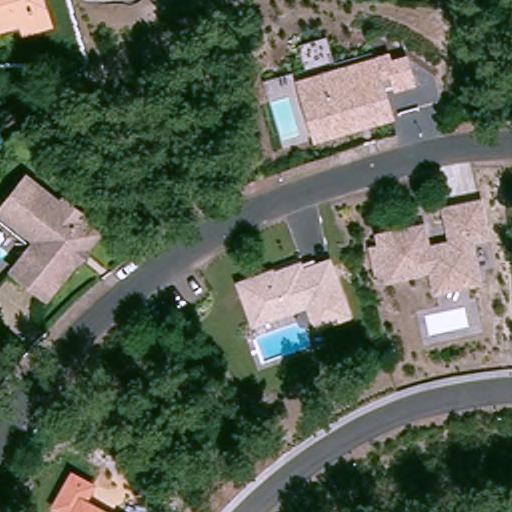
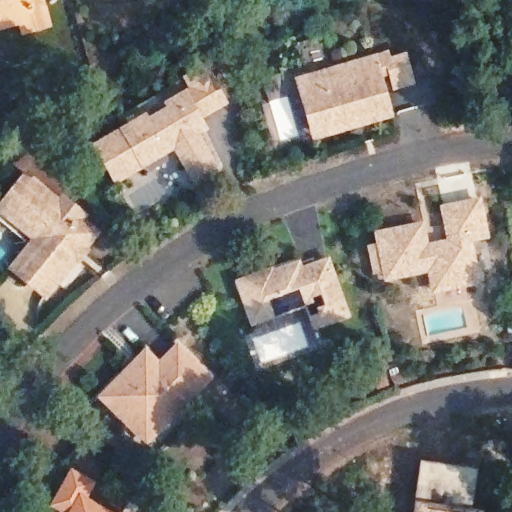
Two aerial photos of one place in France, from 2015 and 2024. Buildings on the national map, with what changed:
unchanged [(37,31),(16,38),(12,27),(0,31),(0,0),(28,0),(37,31)]
unchanged [(314,127),(310,107),(316,106),(313,96),(308,97),(298,44),(322,39),(330,78),(383,67),(388,93),(365,97),(368,116),(314,127)]
new [(115,179),(97,147),(150,119),(152,124),(174,111),(171,107),(189,97),(196,93),(189,81),(208,70),(215,82),(229,106),(202,121),(209,132),(200,137),(220,172),(197,185),(177,149),(167,155),(161,144),(140,156),(144,163),(146,167),(118,183),(115,179)]
unchanged [(26,248),(0,226),(0,216),(1,216),(29,182),(62,209),(65,205),(86,222),(82,226),(99,240),(47,302),(30,288),(14,275),(28,258),(26,248)]
unchanged [(437,296),(432,275),(389,284),(388,279),(380,240),(423,231),(428,253),(453,248),(446,214),(481,207),(488,241),(472,245),(478,280),(480,287),(437,296)]
unchanged [(274,266),(276,270),(302,261),(304,266),(332,257),(352,319),(312,333),(306,311),(252,329),(235,282),(274,266)]
new [(146,347),(160,362),(177,342),(215,380),(146,448),(97,398),(146,347)]
new [(421,463),(479,471),(476,512),(414,512),(416,500),(421,463)]
unchanged [(71,468),(97,483),(89,498),(113,512),(61,512),(49,505),(71,468)]
unchanged [(124,512),(120,512),(121,511),(124,512)]

